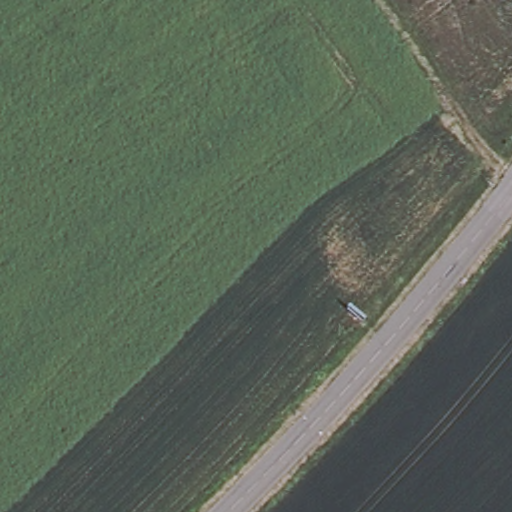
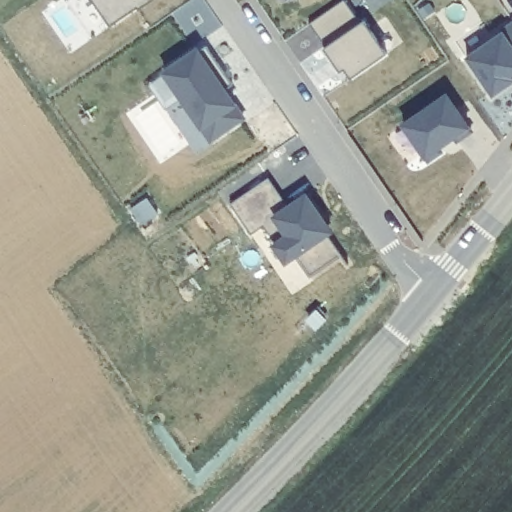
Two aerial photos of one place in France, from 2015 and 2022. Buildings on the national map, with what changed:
new [(143,12),(142,10),(115,29),(95,0),(158,0),(159,1),(143,12)]
new [(348,1),(364,25),(368,22),(391,55),(355,81),(340,60),(336,62),(327,50),(329,49),(313,26),(348,1)]
new [(507,35),(506,34),(512,29),(512,86),(496,96),(471,60),(507,35)]
new [(201,52),(202,54),(210,49),(237,86),(228,92),(247,120),(215,143),(168,75),(201,52)]
new [(472,130),(457,140),(455,135),(438,146),(442,150),(428,160),(403,124),(447,94),(472,130)]
new [(297,256),(286,265),(270,245),(277,240),(263,225),(252,235),(230,204),(269,179),(287,205),(307,192),(333,232),(328,235),(342,255),(310,276),(297,256)]

